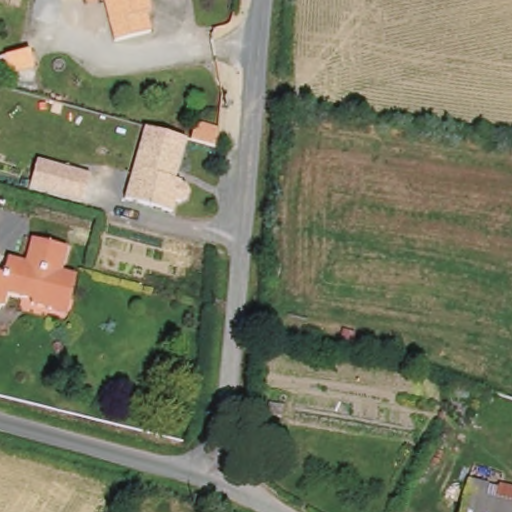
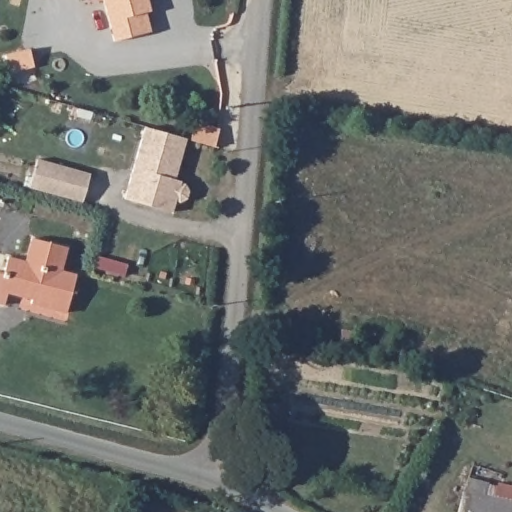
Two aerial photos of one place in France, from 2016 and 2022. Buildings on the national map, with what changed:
unchanged [(140,9),(146,30),(110,40),(99,0),(145,0),(147,8),(140,9)]
unchanged [(31,53),(34,71),(9,75),(6,57),(31,53)]
unchanged [(223,129),(218,147),(194,141),(198,123),(223,129)]
unchanged [(177,178),(184,180),(175,210),(127,199),(147,126),(187,138),(177,178)]
unchanged [(5,259),(23,263),(28,240),(64,249),(58,272),(73,277),(68,300),(51,296),(48,310),(27,305),(29,300),(5,294),(2,308),(0,307),(0,275),(1,275),(5,259)]
unchanged [(287,406),(286,418),(270,417),(272,404),(287,406)]
unchanged [(466,476),(485,482),(482,492),(496,496),(499,482),(512,485),(512,512),(457,512),(466,476)]

